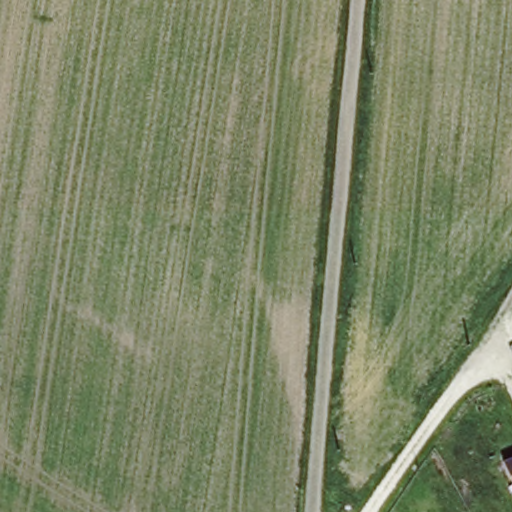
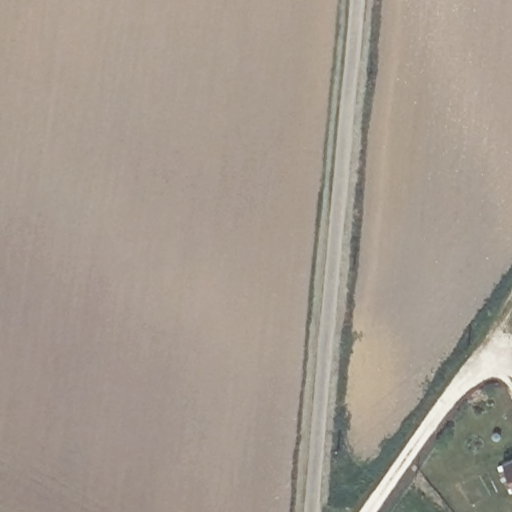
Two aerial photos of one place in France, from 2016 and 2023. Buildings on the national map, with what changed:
unchanged [(512,467),(507,456),(512,454),(512,467)]

